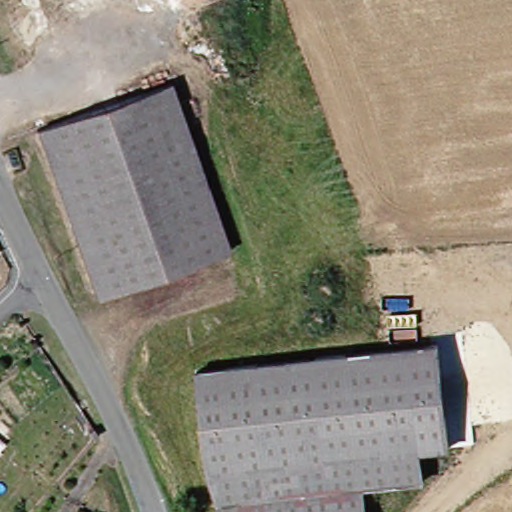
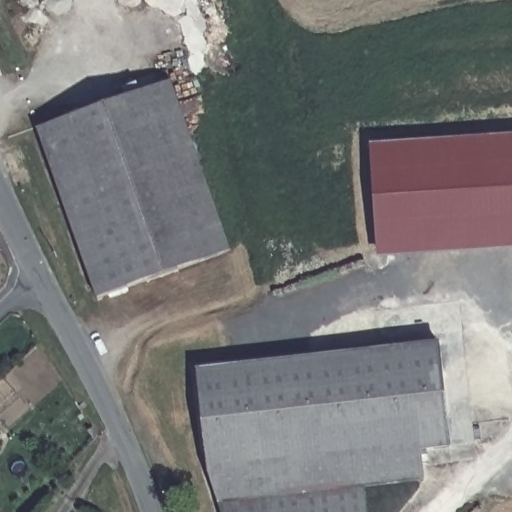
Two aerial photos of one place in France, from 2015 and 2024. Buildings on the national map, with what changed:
unchanged [(101,292),(43,126),(172,79),(229,244),(101,292)]
new [(512,245),(379,253),(373,143),(512,133),(512,245)]
unchanged [(206,464),(200,366),(441,340),(450,443),(421,445),(423,478),(366,485),(367,512),(222,512),(206,464)]
demolished [(90,436),(84,442),(78,436),(86,429),(90,436)]

